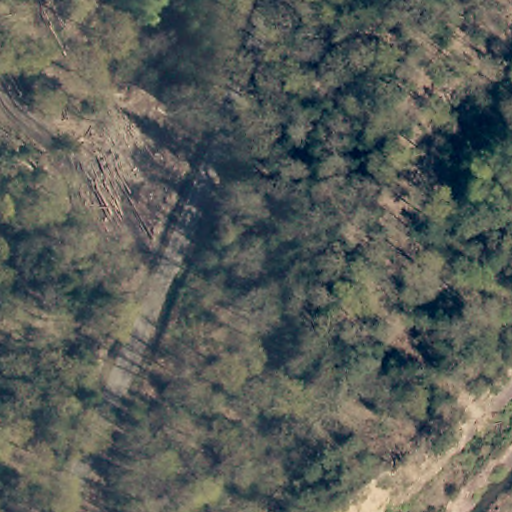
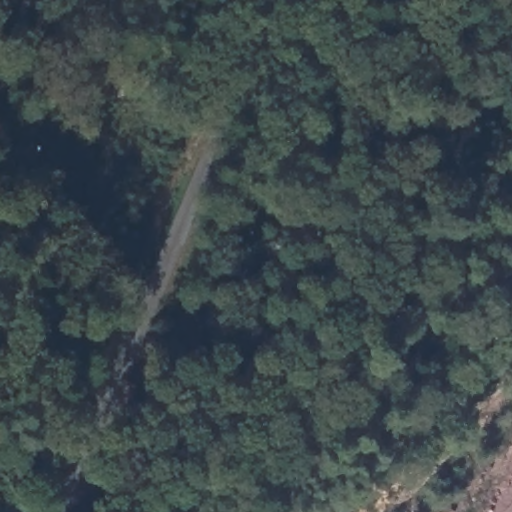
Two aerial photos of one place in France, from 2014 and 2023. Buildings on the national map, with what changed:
[]

